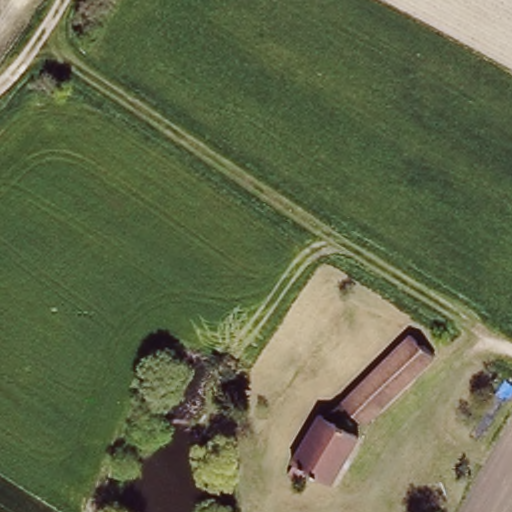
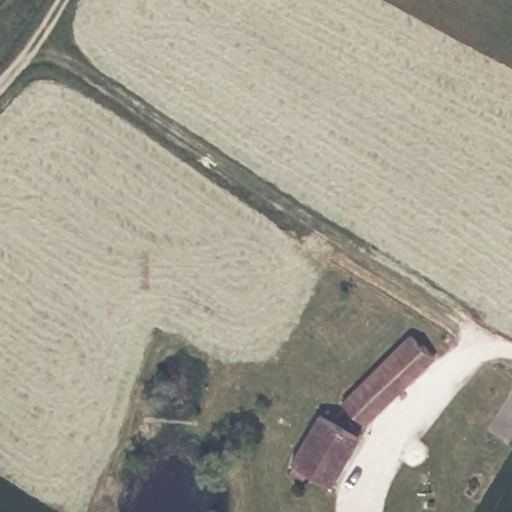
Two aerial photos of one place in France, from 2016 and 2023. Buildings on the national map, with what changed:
unchanged [(433,358),(365,427),(343,406),(411,336),(433,358)]
unchanged [(355,439),(329,485),(303,470),(294,486),(278,476),(313,415),(355,439)]

